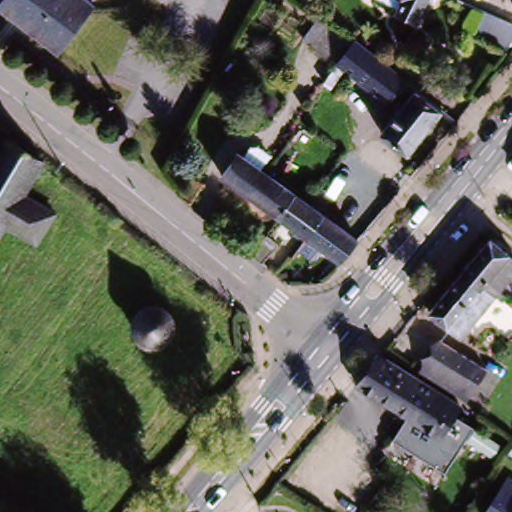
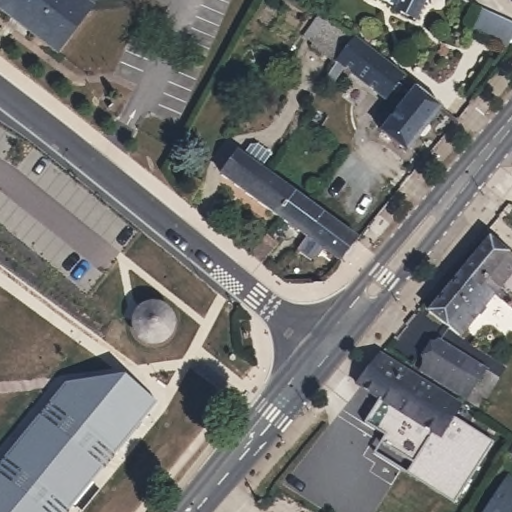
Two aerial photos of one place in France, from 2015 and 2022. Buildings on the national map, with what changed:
unchanged [(55,55),(16,26),(7,19),(0,14),(0,0),(82,0),(91,7),(55,55)]
unchanged [(392,14),(367,1),(367,0),(422,0),(411,24),(392,14)]
unchanged [(510,57),(477,42),(489,17),(490,17),(512,27),(512,53),(510,57)]
unchanged [(372,57),(378,61),(361,87),(336,70),(340,65),(331,59),(345,39),(372,57)]
unchanged [(378,61),(385,67),(429,101),(414,122),(372,90),(357,109),(354,107),(350,102),(361,87),(378,61)]
demolished [(0,142),(5,135),(37,154),(17,186),(1,215),(0,215),(0,142)]
unchanged [(273,219),(217,178),(234,155),(237,157),(242,151),(251,148),(264,157),(255,170),(261,175),(289,196),(273,219)]
unchanged [(209,191),(195,211),(186,204),(186,202),(197,184),(209,191)]
unchanged [(302,241),(273,219),(289,196),(308,210),(319,218),(302,241)]
unchanged [(337,266),(302,241),(319,218),(355,245),(337,266)]
unchanged [(481,237),(511,262),(491,287),(480,277),(471,287),(452,272),(481,237)]
unchanged [(264,251),(268,245),(281,255),(267,272),(256,262),(264,251)]
unchanged [(283,285),(294,270),(302,276),(291,291),(283,285)]
unchanged [(471,287),(480,277),(491,287),(452,332),(424,308),(452,272),(471,287)]
unchanged [(182,332),(182,333),(182,334),(182,335),(182,336),(182,337),(181,337),(181,338),(181,339),(181,340),(180,340),(180,341),(180,342),(179,342),(179,343),(178,343),(177,344),(177,345),(177,346),(176,346),(176,347),(175,347),(174,347),(174,348),(173,348),(172,348),(172,349),(171,350),(170,350),(170,351),(169,351),(168,351),(167,351),(167,352),(166,352),(165,352),(164,352),(163,352),(162,352),(161,352),(160,352),(159,352),(158,352),(157,352),(156,352),(155,351),(154,351),(153,351),(152,351),(152,350),(151,350),(151,349),(150,349),(150,348),(149,348),(148,348),(148,347),(147,347),(146,346),(145,345),(145,344),(144,344),(144,343),(144,342),(143,342),(142,342),(142,341),(142,340),(142,339),(141,339),(141,338),(141,337),(140,336),(140,335),(140,334),(140,333),(140,332),(140,331),(140,330),(140,329),(140,328),(140,327),(140,326),(140,325),(141,325),(141,324),(141,323),(141,322),(142,322),(142,321),(142,320),(143,319),(143,318),(144,318),(144,317),(145,317),(145,316),(146,316),(146,315),(147,315),(147,314),(148,313),(149,313),(150,312),(151,312),(152,312),(152,311),(153,311),(154,311),(155,311),(155,310),(156,310),(157,310),(158,310),(159,310),(160,310),(161,310),(162,310),(163,310),(164,310),(165,310),(166,310),(167,310),(167,311),(168,311),(169,311),(170,311),(170,312),(171,312),(172,312),(172,313),(173,313),(174,313),(174,314),(175,314),(175,315),(176,315),(176,316),(177,316),(177,317),(178,317),(178,318),(179,318),(179,319),(179,320),(180,320),(180,321),(180,322),(181,322),(181,323),(181,324),(182,325),(182,326),(182,327),(182,328),(182,329),(182,330),(182,331),(182,332)]
unchanged [(487,369),(468,398),(420,368),(439,339),(487,369)]
unchanged [(462,406),(456,417),(474,428),(446,473),(392,440),(406,417),(356,385),(380,353),(462,406)]
new [(7,449),(64,385),(76,382),(78,385),(122,377),(157,406),(69,512),(0,512),(0,461),(9,451),(7,449)]
unchanged [(502,488),(507,482),(512,486),(512,512),(484,512),(502,488)]

